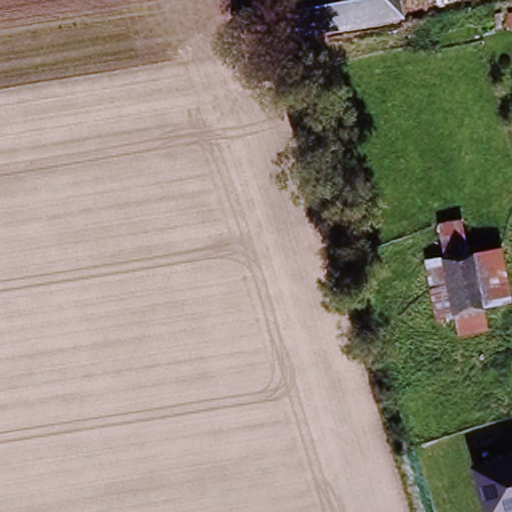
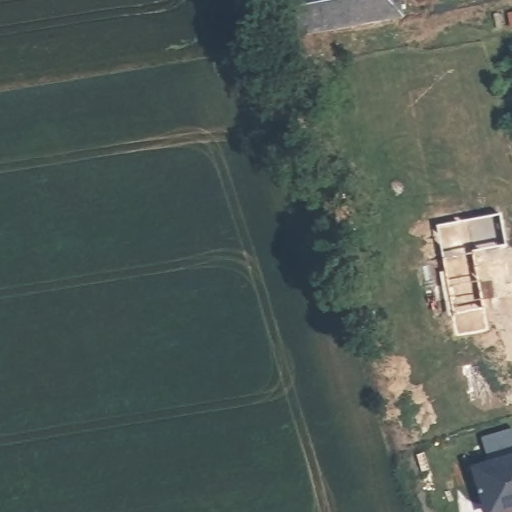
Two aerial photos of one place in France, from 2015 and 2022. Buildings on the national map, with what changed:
unchanged [(274,37),(267,0),(397,0),(400,15),(274,37)]
unchanged [(452,326),(450,316),(431,319),(423,262),(442,258),(437,225),(459,222),(464,255),(472,254),(480,312),(481,322),(483,336),(454,341),(452,326)]
unchanged [(480,312),(472,254),(495,250),(498,267),(503,305),(480,312)]
unchanged [(512,455),(512,512),(483,512),(470,466),(512,455)]

